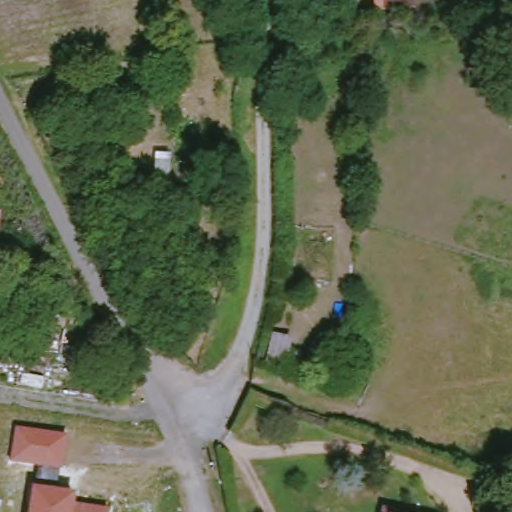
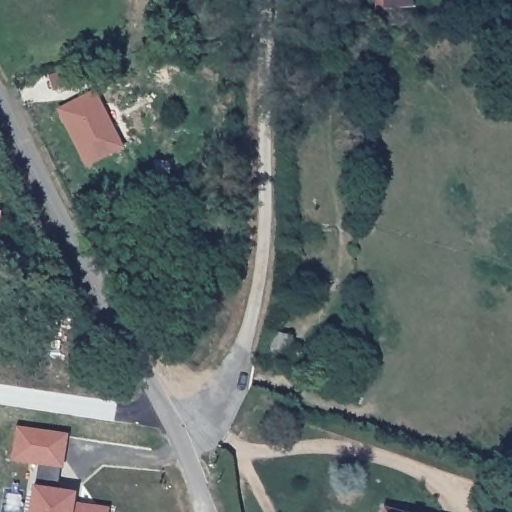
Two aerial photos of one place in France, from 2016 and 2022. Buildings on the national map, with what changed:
new [(57,109),(94,91),(123,148),(86,168),(57,109)]
unchanged [(66,434),(59,485),(77,489),(75,503),(108,508),(108,512),(28,512),(31,485),(36,484),(37,468),(10,464),(15,427),(66,434)]

